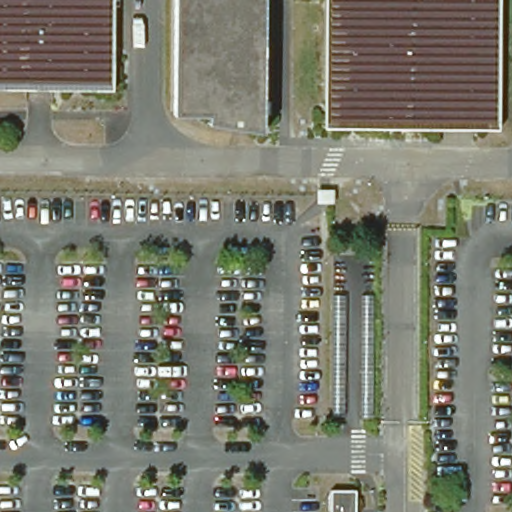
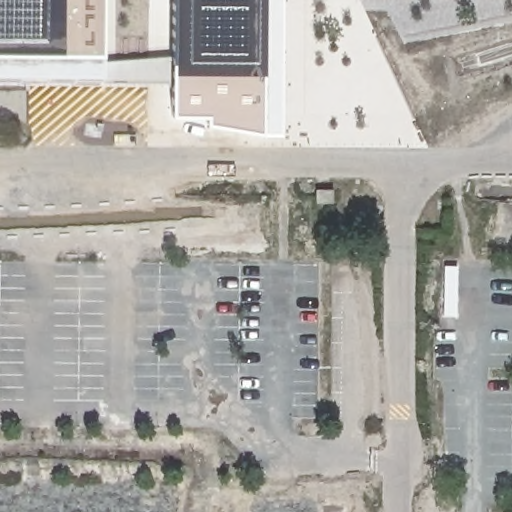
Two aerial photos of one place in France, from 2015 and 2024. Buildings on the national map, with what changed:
new [(174,57),(174,80),(174,85),(102,79),(102,86),(0,85),(0,0),(104,0),(103,59),(174,57)]
demolished [(53,90),(28,90),(0,89),(0,0),(107,0),(106,90),(53,90)]
unchanged [(174,119),(175,0),(265,0),(263,136),(174,119)]
new [(263,128),(265,0),(282,0),(281,132),(263,128)]
demolished [(330,127),(331,0),(494,0),(492,128),(330,127)]
demolished [(331,490),(355,490),(355,512),(332,512),(331,490)]

